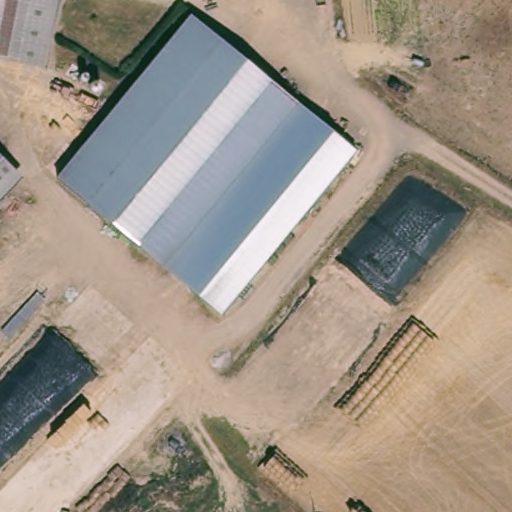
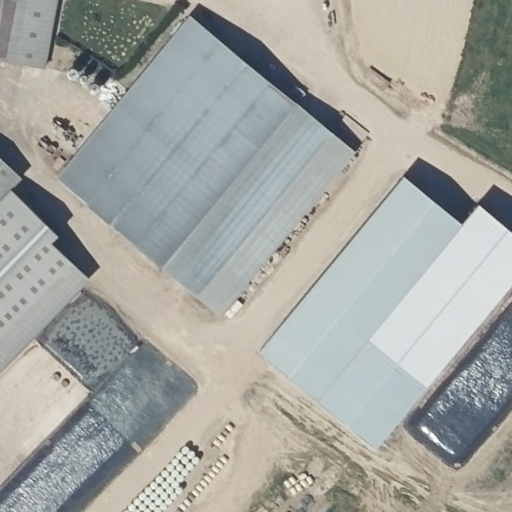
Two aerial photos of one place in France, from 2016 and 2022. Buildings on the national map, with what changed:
unchanged [(46,72),(0,61),(0,0),(61,0),(46,72)]
unchanged [(189,15),(354,150),(218,315),(55,176),(189,15)]
unchanged [(22,175),(0,198),(0,154),(22,175)]
new [(377,445),(261,349),(403,175),(463,222),(367,338),(426,386),(377,445)]
new [(0,371),(0,198),(10,188),(57,234),(51,241),(90,279),(0,371)]

